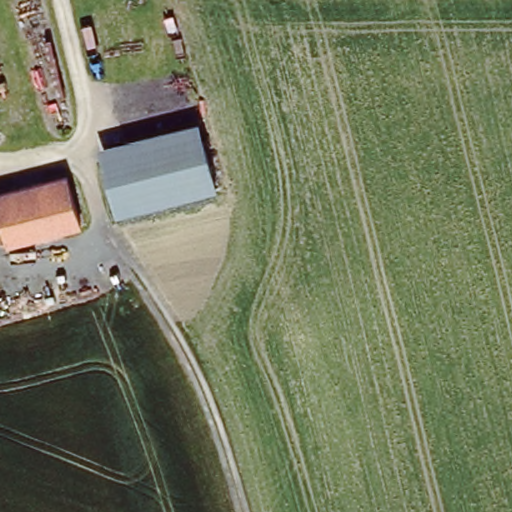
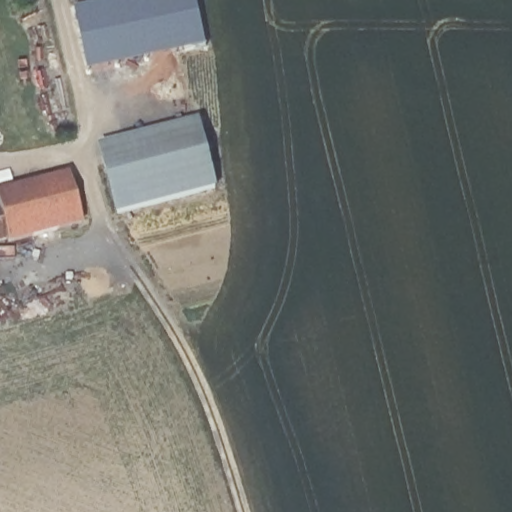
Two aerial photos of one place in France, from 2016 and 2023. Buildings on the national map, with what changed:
new [(77,10),(120,0),(198,0),(210,47),(90,72),(77,10)]
unchanged [(204,123),(222,191),(117,217),(100,147),(204,123)]
unchanged [(64,185),(74,230),(0,248),(0,200),(64,185)]

